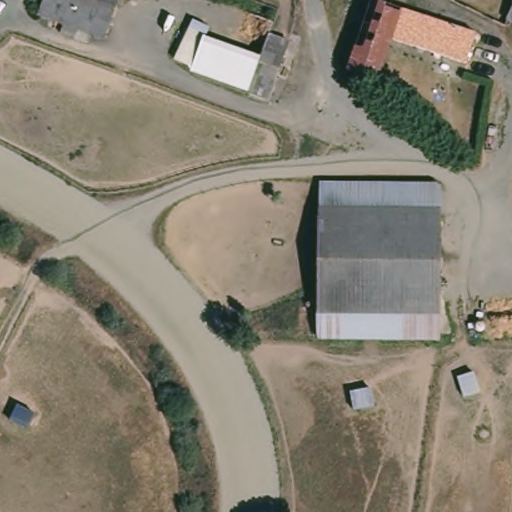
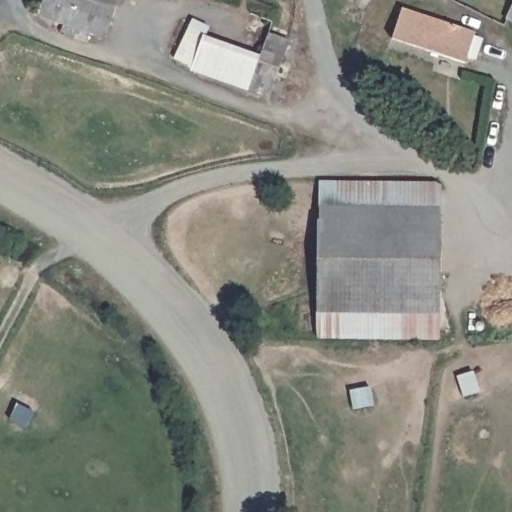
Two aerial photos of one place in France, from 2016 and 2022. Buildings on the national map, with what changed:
unchanged [(90,29),(41,12),(45,0),(101,0),(90,29)]
unchanged [(107,35),(90,29),(101,0),(119,0),(107,35)]
unchanged [(411,6),(398,36),(383,75),(376,72),(353,65),(377,0),(392,0),(411,6)]
unchanged [(511,0),(512,0),(512,21),(503,16),(511,0)]
unchanged [(478,28),(467,59),(398,36),(411,6),(478,28)]
unchanged [(267,29),(290,38),(270,97),(188,70),(190,67),(173,60),(190,17),(209,25),(205,36),(259,54),(267,29)]
unchanged [(316,315),(317,204),(317,180),(442,181),(440,208),(439,317),(437,339),(316,339),(316,315)]

